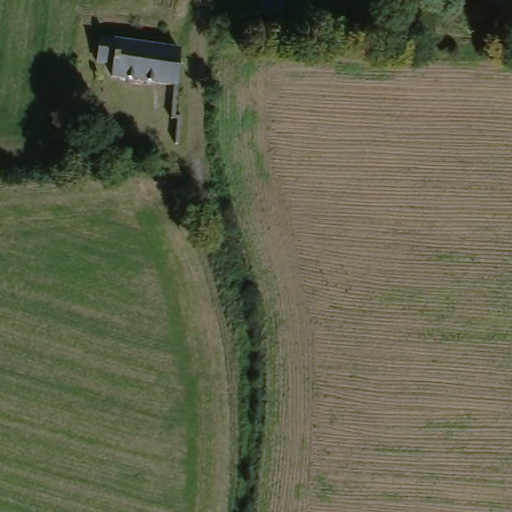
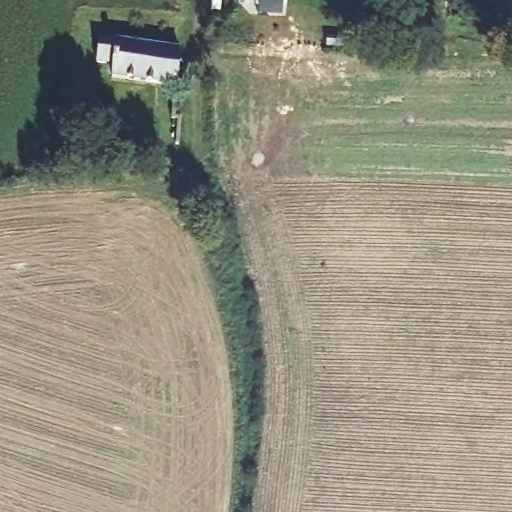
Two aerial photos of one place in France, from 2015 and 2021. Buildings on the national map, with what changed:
unchanged [(177,82),(110,74),(111,60),(100,59),(101,33),(179,44),(178,62),(177,82)]

